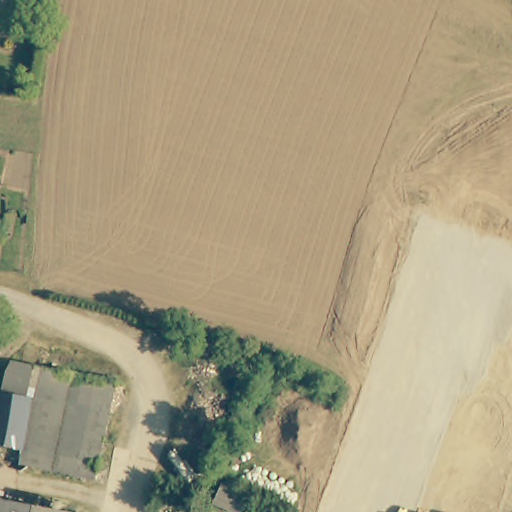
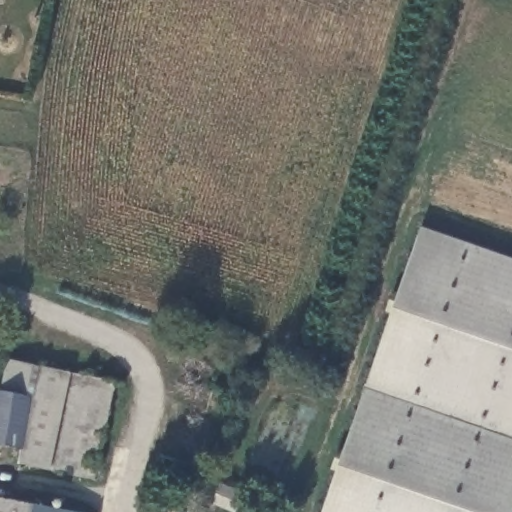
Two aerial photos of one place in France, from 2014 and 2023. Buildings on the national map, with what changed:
new [(512,512),(322,512),(422,226),(512,257),(512,512)]
unchanged [(3,392),(8,372),(9,369),(12,365),(15,364),(18,363),(22,362),(82,372),(82,373),(77,404),(111,409),(109,417),(99,474),(75,469),(77,455),(67,453),(64,470),(19,462),(22,446),(0,442),(0,391),(3,392)]
unchanged [(116,376),(111,409),(77,404),(82,372),(116,376)]
unchanged [(79,512),(0,512),(0,496),(79,512)]

